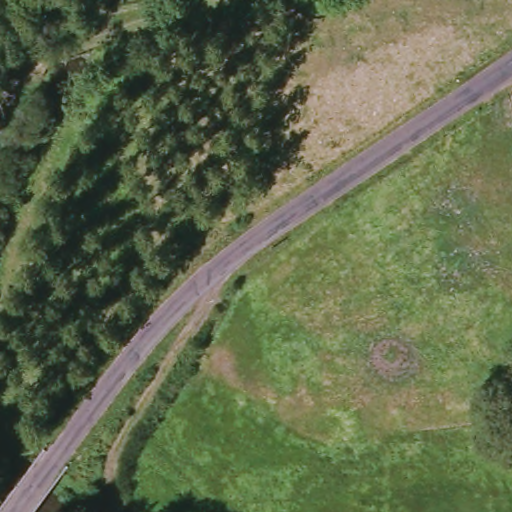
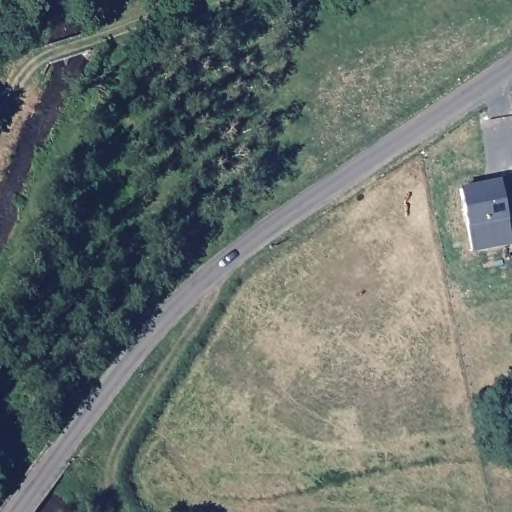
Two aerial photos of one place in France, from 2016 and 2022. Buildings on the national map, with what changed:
new [(512,238),(512,240),(473,248),(461,188),(500,181),(512,238)]

